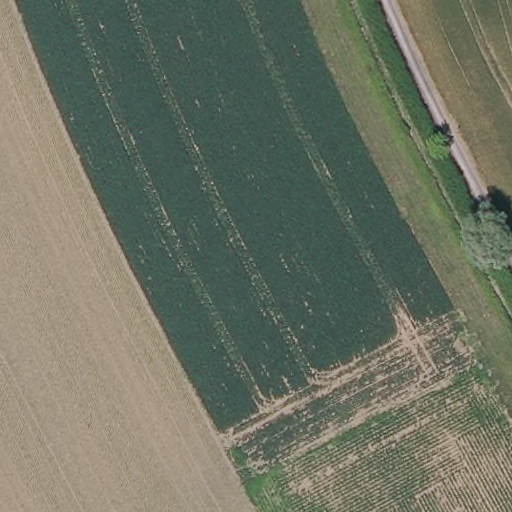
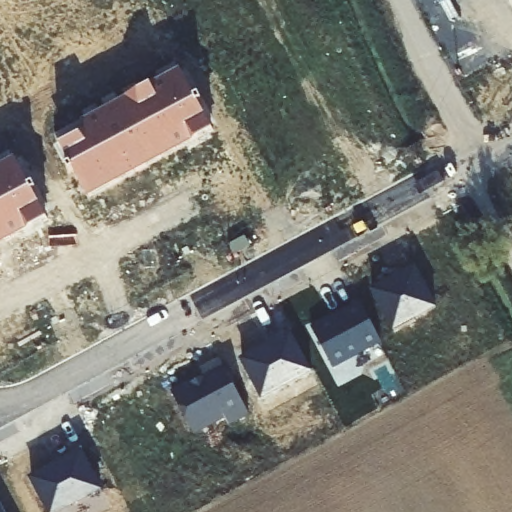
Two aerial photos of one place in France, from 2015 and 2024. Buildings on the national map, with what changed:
new [(180,68),(212,131),(87,199),(53,136),(180,68)]
new [(47,220),(0,246),(0,165),(13,157),(47,220)]
new [(434,308),(413,320),(415,322),(392,333),(370,291),(412,269),(434,308)]
new [(341,315),(340,312),(357,303),(380,342),(330,368),(310,329),(341,315)]
new [(274,342),(273,340),(288,331),(310,370),(260,397),(241,360),(274,342)]
new [(201,377),(196,368),(218,358),(247,412),(227,423),(222,416),(192,431),(172,393),(201,377)]
new [(97,490),(54,512),(46,512),(30,477),(78,453),(97,490)]

